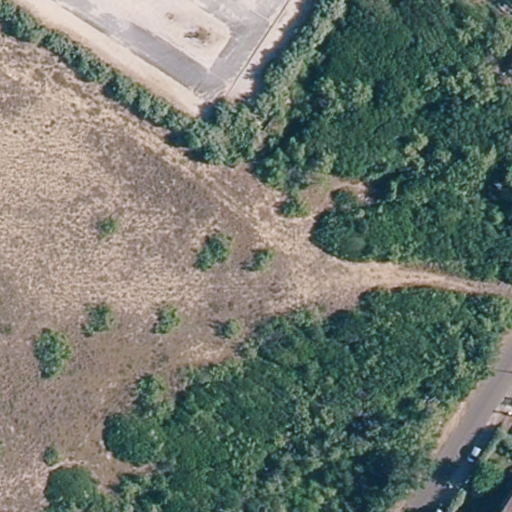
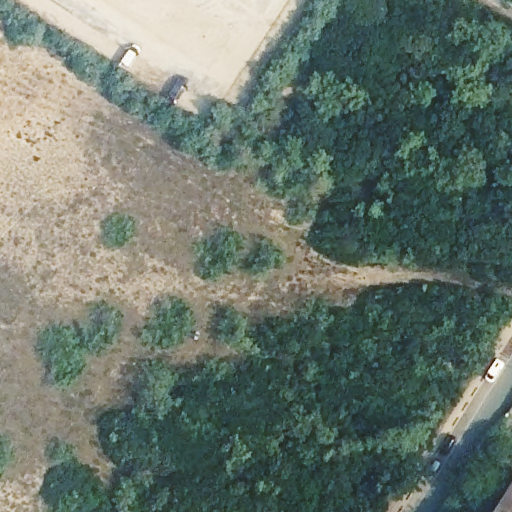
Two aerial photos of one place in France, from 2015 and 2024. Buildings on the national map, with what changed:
unchanged [(512,500),(512,512),(504,512),(512,500)]

